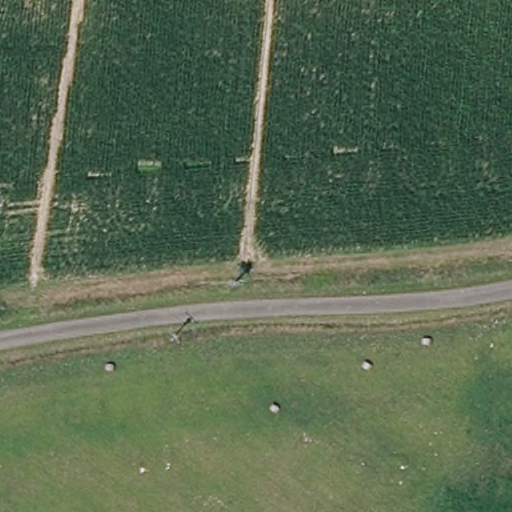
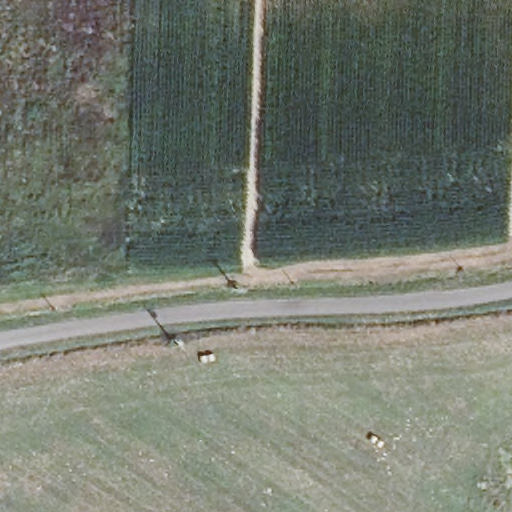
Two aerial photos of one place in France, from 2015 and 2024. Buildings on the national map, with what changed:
[]

